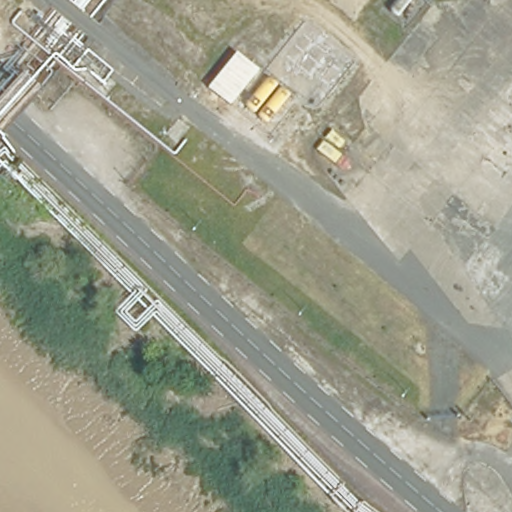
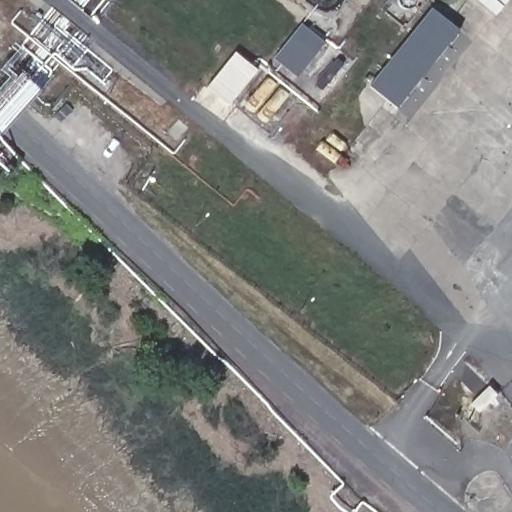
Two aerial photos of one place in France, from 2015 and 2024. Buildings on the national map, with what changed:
new [(368,87),(431,8),(459,31),(397,109),(368,87)]
new [(301,25),(324,43),(297,78),(273,59),(301,25)]
unchanged [(235,52),(259,70),(231,107),(208,88),(235,52)]

